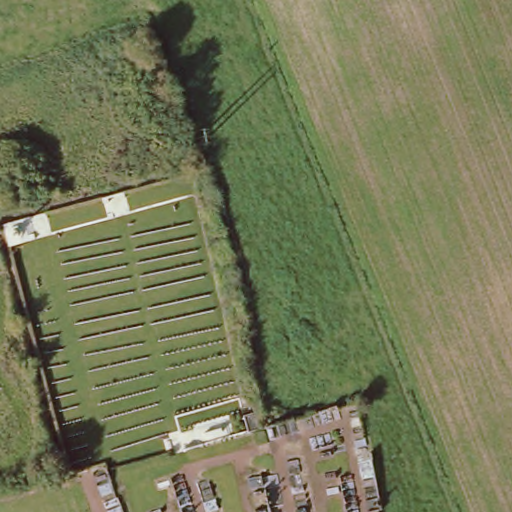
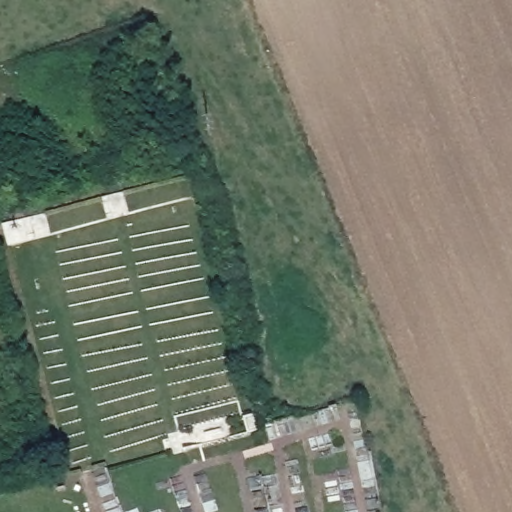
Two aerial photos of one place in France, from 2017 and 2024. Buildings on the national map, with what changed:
unchanged [(247,432),(243,415),(255,413),(259,429),(247,432)]

